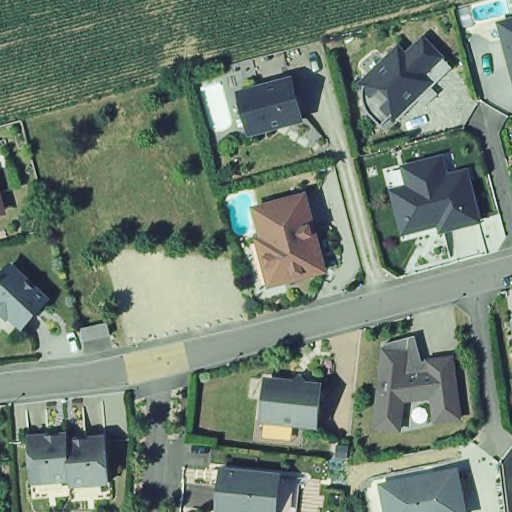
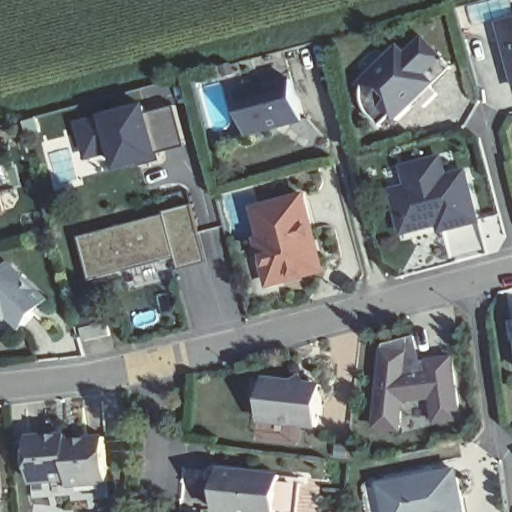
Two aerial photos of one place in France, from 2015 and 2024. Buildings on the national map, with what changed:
unchanged [(505,39),(502,25),(512,22),(512,62),(505,39)]
unchanged [(373,113),(367,105),(365,96),(365,87),(368,77),(375,69),(402,44),(409,51),(427,36),(454,66),(434,85),(440,92),(427,104),(415,92),(407,99),(413,105),(400,117),(395,112),(383,123),(373,113)]
unchanged [(300,120),(248,135),(243,117),(237,95),(244,93),(289,81),(300,120)]
new [(143,108),(145,114),(174,106),(184,143),(155,150),(157,158),(117,169),(109,139),(82,146),(77,125),(143,108)]
unchanged [(405,230),(397,203),(390,169),(407,165),(437,157),(442,177),(467,171),(480,219),(442,229),(407,238),(405,230)]
unchanged [(309,246),(305,248),(307,254),(312,256),(316,274),(295,279),(293,283),(263,290),(257,269),(262,267),(257,246),(255,245),(247,215),(297,203),(309,246)]
new [(178,271),(175,259),(90,282),(77,239),(163,215),(162,213),(190,205),(198,234),(207,263),(178,271)]
unchanged [(10,334),(0,324),(0,276),(2,274),(37,307),(10,334)]
unchanged [(112,337),(87,343),(85,330),(108,325),(112,337)]
unchanged [(415,339),(424,372),(432,371),(432,363),(454,360),(462,421),(437,424),(434,399),(405,403),(401,432),(377,430),(385,347),(415,339)]
unchanged [(250,425),(252,404),(256,404),(259,384),(281,387),(288,382),(295,388),(310,389),(310,396),(306,431),(250,425)]
unchanged [(59,492),(22,495),(20,479),(17,434),(37,433),(38,436),(56,435),(56,441),(75,439),(75,436),(94,435),(97,479),(97,495),(60,497),(59,492)]
unchanged [(419,482),(420,487),(437,484),(435,479),(460,474),(466,512),(389,512),(385,489),(419,482)]
unchanged [(203,490),(210,484),(212,476),(265,481),(283,483),(281,512),(201,512),(203,490)]

